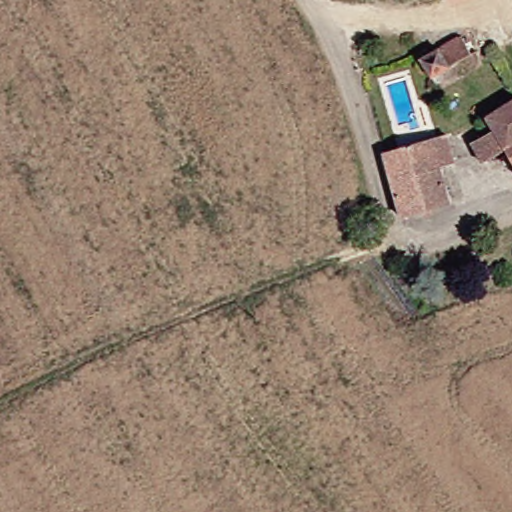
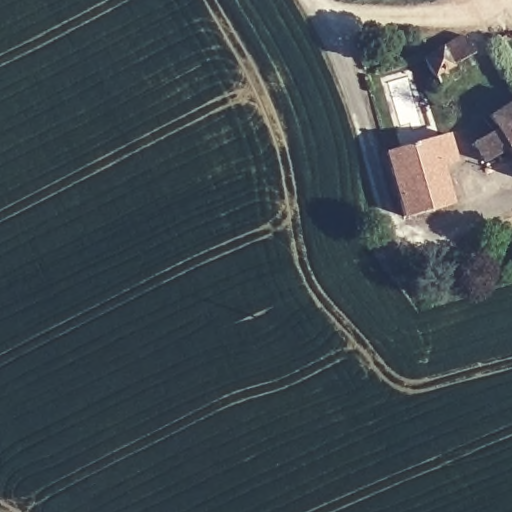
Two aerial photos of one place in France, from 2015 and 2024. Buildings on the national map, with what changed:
unchanged [(508,1),(474,18),(464,0),(509,0),(508,1)]
unchanged [(485,51),(417,86),(401,60),(470,23),(485,51)]
unchanged [(512,151),(491,163),(477,142),(497,129),(489,114),(512,102),(512,151)]
unchanged [(431,141),(447,134),(460,164),(445,170),(458,199),(406,216),(387,158),(431,141)]

